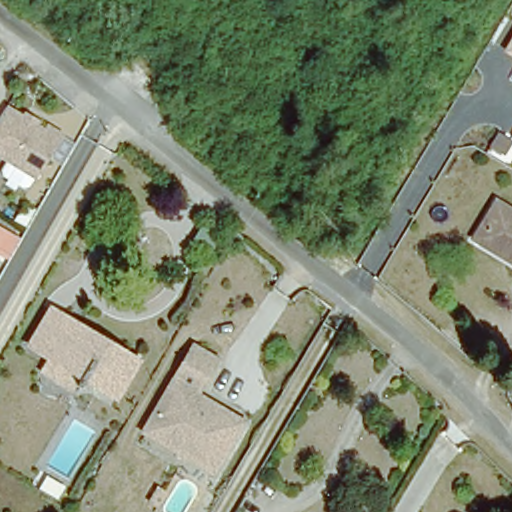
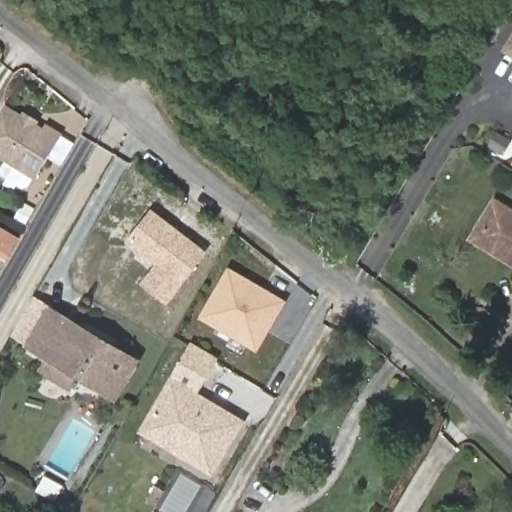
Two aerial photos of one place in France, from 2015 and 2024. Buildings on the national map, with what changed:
unchanged [(504,52),(512,38),(512,57),(504,52)]
unchanged [(64,135),(34,179),(29,187),(23,188),(18,185),(14,191),(5,185),(9,180),(3,176),(1,169),(5,161),(0,158),(0,116),(8,105),(23,115),(24,111),(41,121),(39,125),(45,129),(48,125),(64,135)]
unchanged [(500,259),(507,249),(497,244),(471,226),(489,195),(512,208),(512,266),(500,259)]
new [(156,265),(125,242),(151,209),(208,252),(169,305),(141,285),(156,265)]
new [(229,267),(288,301),(258,352),(199,318),(229,267)]
unchanged [(40,365),(48,351),(29,339),(43,317),(51,303),(136,356),(114,392),(78,370),(70,383),(40,365)]
unchanged [(149,407),(188,340),(210,353),(188,387),(236,417),(234,422),(209,465),(178,446),(139,423),(149,407)]

